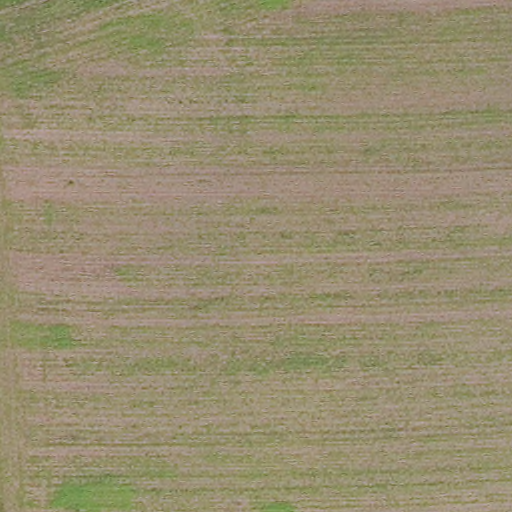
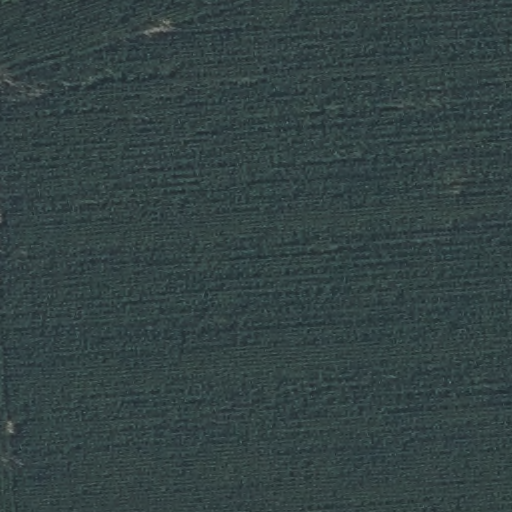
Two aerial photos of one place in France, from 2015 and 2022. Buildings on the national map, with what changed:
[]

